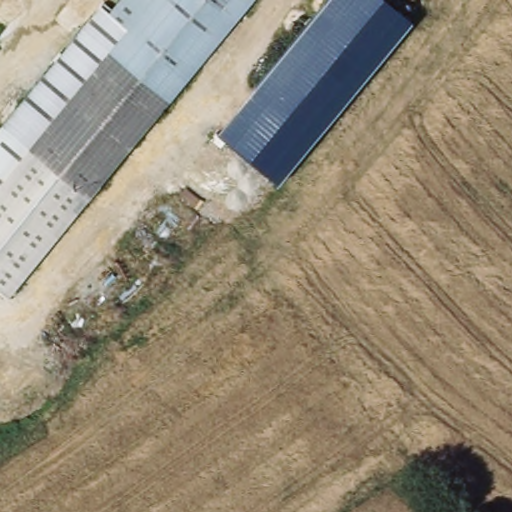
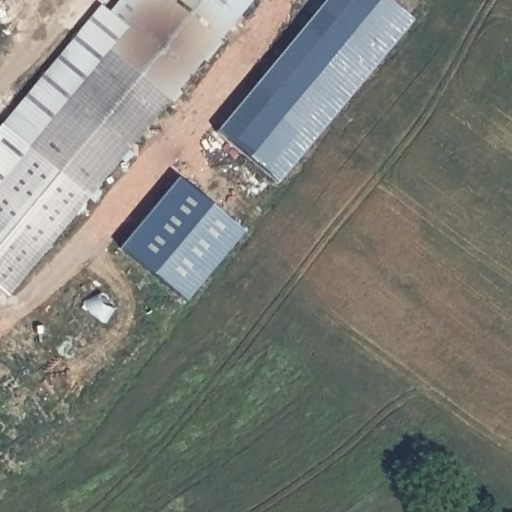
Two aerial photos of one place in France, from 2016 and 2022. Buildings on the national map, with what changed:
unchanged [(120,0),(253,0),(88,200),(27,150),(127,29),(109,14),(120,0)]
unchanged [(277,183),(216,134),(326,0),(387,0),(412,20),(277,183)]
unchanged [(27,150),(88,200),(7,295),(0,288),(0,122),(97,4),(109,14),(127,29),(27,150)]
new [(175,185),(237,236),(180,305),(118,255),(175,185)]

